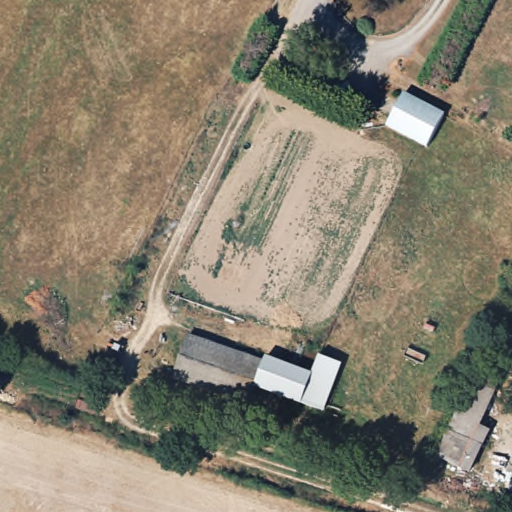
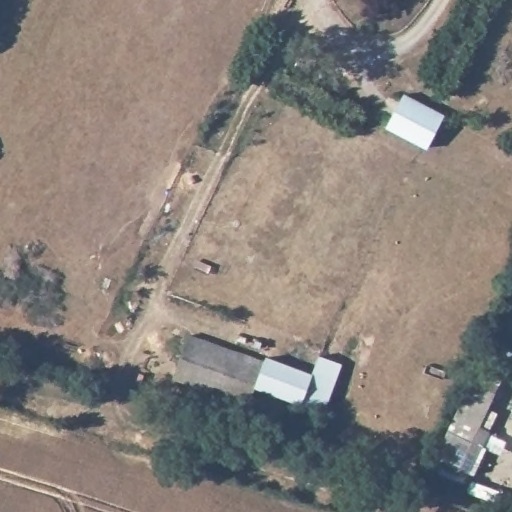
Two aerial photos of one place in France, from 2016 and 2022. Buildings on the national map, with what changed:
unchanged [(443,117),(428,148),(390,129),(405,97),(443,117)]
unchanged [(328,414),(257,392),(252,409),(173,382),(187,335),(264,357),(313,373),(318,355),(343,363),(328,414)]
unchanged [(482,367),(505,378),(460,468),(438,458),(482,367)]
unchanged [(503,512),(493,506),(498,494),(512,498),(512,512),(503,512)]

